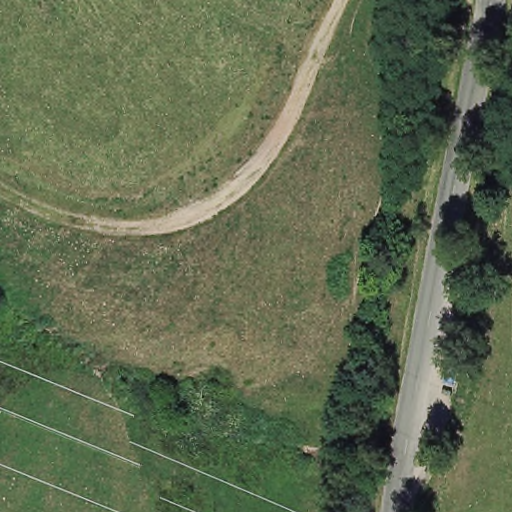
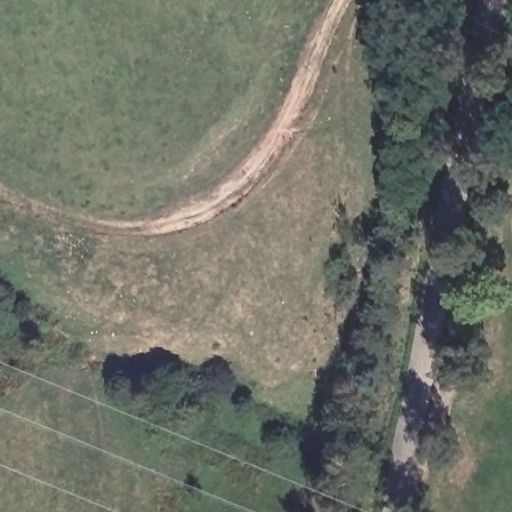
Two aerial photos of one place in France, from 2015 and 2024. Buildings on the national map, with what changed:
unchanged [(443,359),(457,361),(452,385),(438,383),(443,359)]

